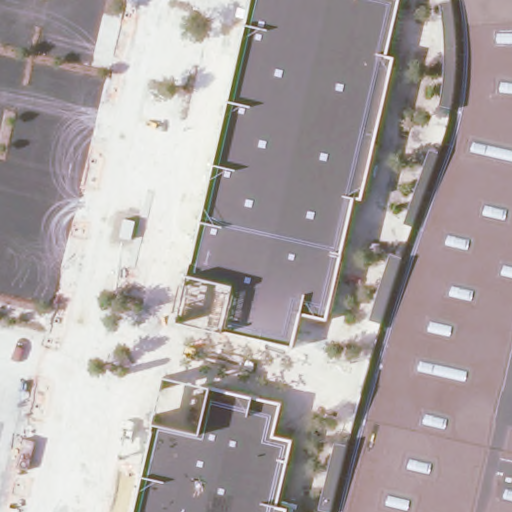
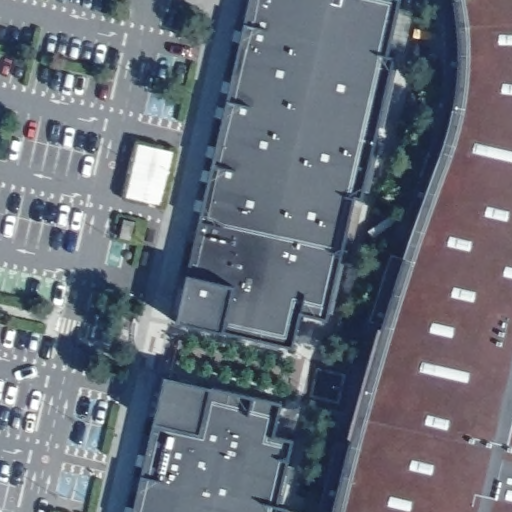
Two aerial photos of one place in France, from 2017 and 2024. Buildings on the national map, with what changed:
unchanged [(386,55),(395,59),(361,200),(353,197),(326,318),(300,313),(292,343),(224,328),(177,320),(187,274),(251,0),(399,0),(386,55)]
unchanged [(401,271),(447,137),(458,73),(454,6),(452,0),(512,0),(512,512),(334,512),(352,437),(401,271)]
new [(165,207),(123,197),(136,143),(178,153),(165,207)]
unchanged [(162,375),(212,386),(282,401),(274,436),(293,439),(278,505),(287,508),(286,512),(134,512),(154,421),(162,375)]

